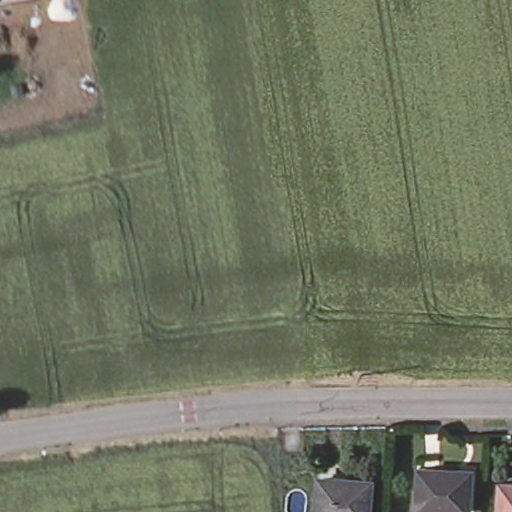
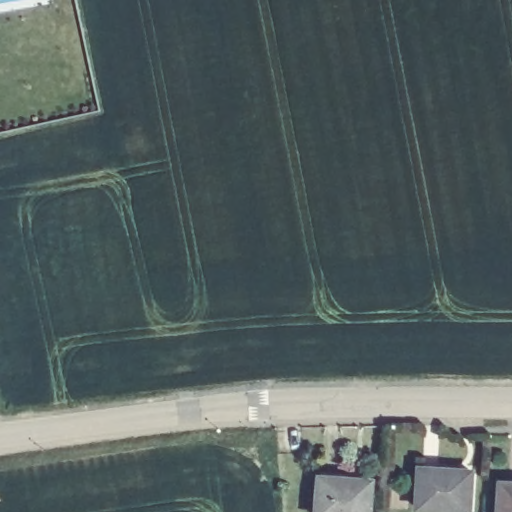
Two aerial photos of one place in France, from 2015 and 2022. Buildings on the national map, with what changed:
unchanged [(474,512),(450,512),(419,510),(421,471),(476,475),(474,512)]
unchanged [(373,486),(372,512),(321,512),(322,485),(373,486)]
unchanged [(512,486),(512,512),(501,512),(502,486),(512,486)]

